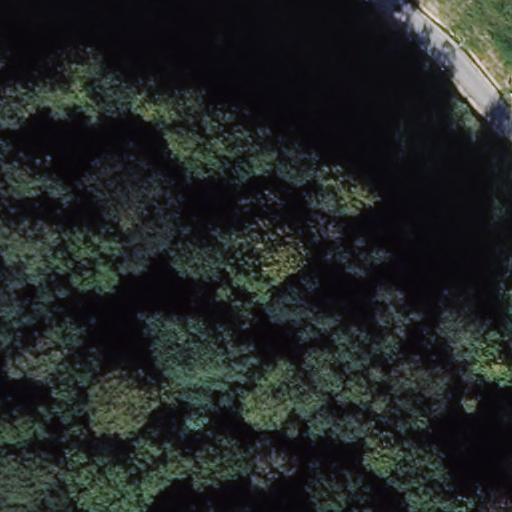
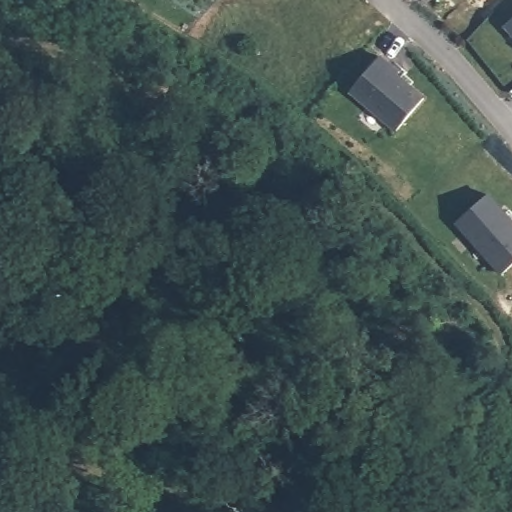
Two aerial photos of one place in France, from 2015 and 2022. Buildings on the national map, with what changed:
new [(505,27),(512,21),(512,35),(505,27)]
new [(393,69),(398,73),(395,76),(400,80),(404,75),(414,84),(410,88),(424,100),(396,132),(350,93),(380,58),(393,69)]
new [(505,215),(510,211),(512,214),(512,266),(502,276),(457,225),(488,196),(505,215)]

